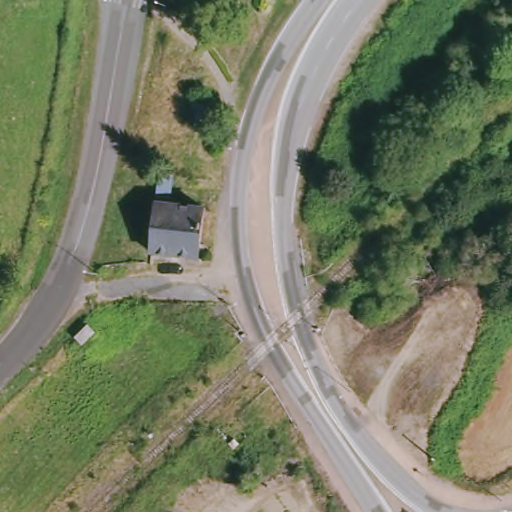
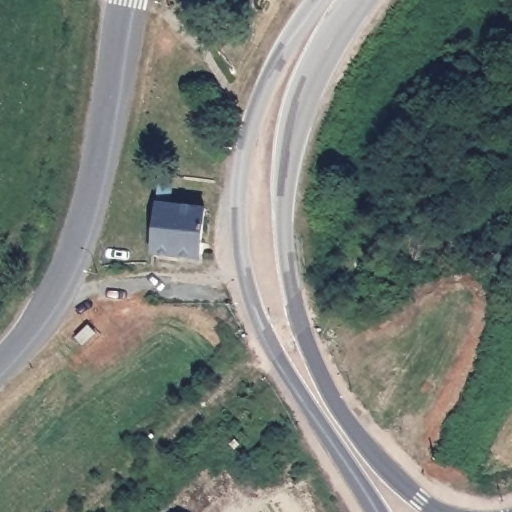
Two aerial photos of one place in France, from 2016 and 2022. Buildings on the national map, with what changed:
unchanged [(163,177),(179,178),(178,209),(208,212),(204,257),(158,256),(163,177)]
unchanged [(97,332),(85,343),(76,335),(83,326),(88,322),(97,332)]

